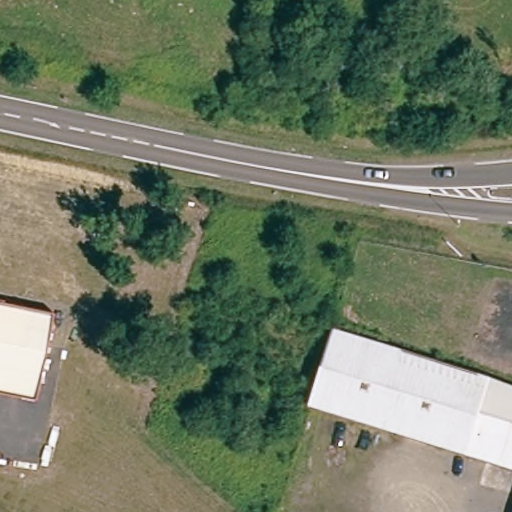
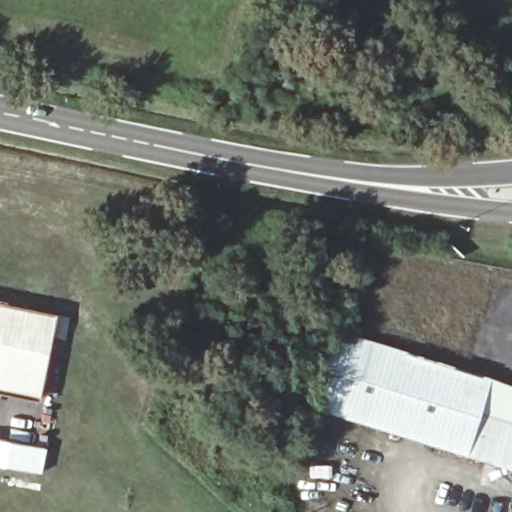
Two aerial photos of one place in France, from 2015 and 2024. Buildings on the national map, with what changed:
unchanged [(37,392),(0,385),(0,305),(52,315),(45,352),(37,392)]
unchanged [(488,380),(512,388),(512,471),(309,407),(333,330),(488,380)]
new [(40,473),(0,465),(0,439),(45,447),(40,473)]

